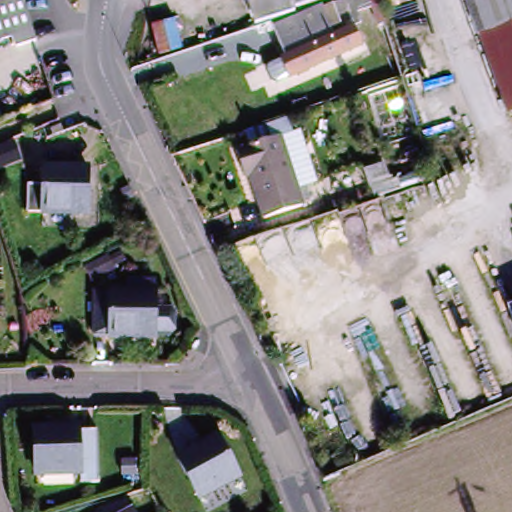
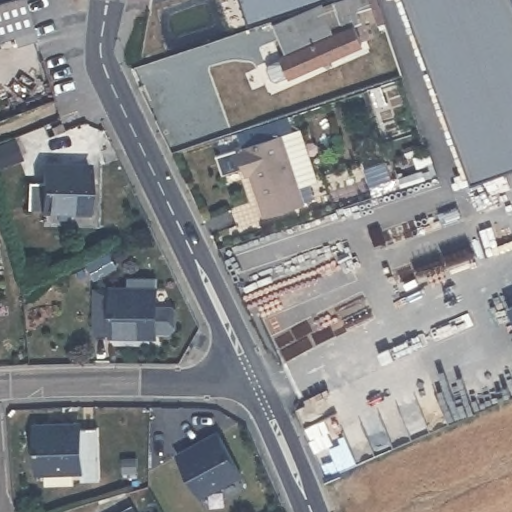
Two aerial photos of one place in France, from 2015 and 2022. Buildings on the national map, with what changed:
unchanged [(15,47),(11,34),(0,38),(0,0),(24,0),(37,40),(15,47)]
unchanged [(264,25),(255,0),(336,0),(269,23),(264,25)]
unchanged [(358,10),(363,23),(371,22),(379,47),(270,82),(263,61),(266,55),(278,53),(269,23),(336,0),(373,0),(375,5),(358,10)]
new [(474,188),(405,0),(512,0),(512,174),(474,188)]
unchanged [(166,57),(160,35),(183,27),(189,49),(166,57)]
unchanged [(255,215),(243,174),(236,170),(228,145),(273,131),(283,127),(285,129),(295,161),(283,164),(295,202),(255,215)]
unchanged [(0,167),(0,144),(13,139),(21,158),(0,167)]
unchanged [(88,204),(28,205),(28,178),(42,178),(42,160),(87,160),(88,204)]
unchanged [(391,192),(370,198),(361,170),(382,164),(391,192)]
demolished [(441,226),(421,232),(409,194),(429,187),(441,226)]
unchanged [(92,279),(86,267),(108,256),(114,268),(92,279)]
unchanged [(182,303),(186,307),(186,322),(182,327),(166,327),(166,331),(121,330),(121,327),(106,327),(105,286),(166,287),(166,303),(182,303)]
unchanged [(510,304),(512,303),(512,308),(510,304)]
unchanged [(101,476),(84,477),(83,467),(39,470),(36,425),(81,422),(81,427),(99,427),(101,476)]
unchanged [(213,426),(241,477),(202,498),(173,447),(213,426)]
unchanged [(122,460),(136,459),(137,475),(122,476),(122,460)]
unchanged [(132,512),(125,512),(130,509),(132,512)]

